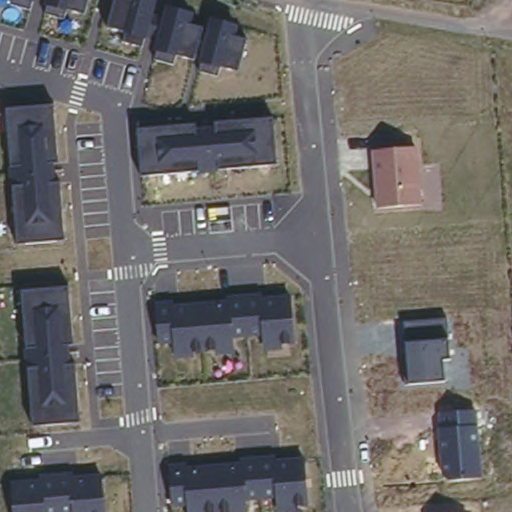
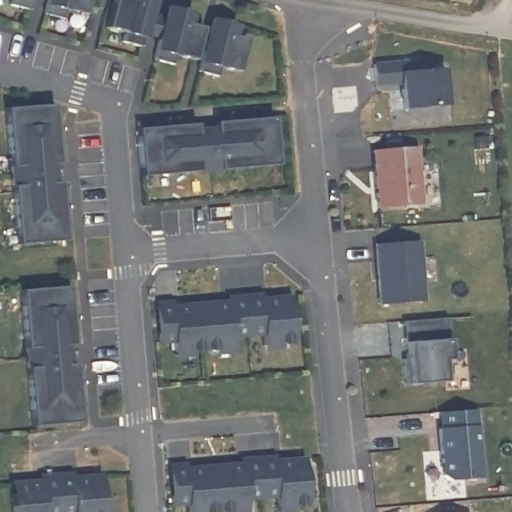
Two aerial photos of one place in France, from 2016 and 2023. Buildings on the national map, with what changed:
unchanged [(35,0),(31,12),(11,5),(12,0),(35,0)]
unchanged [(66,10),(63,20),(43,15),(46,0),(89,0),(85,15),(66,10)]
unchanged [(105,26),(113,0),(160,0),(156,15),(164,17),(167,5),(196,13),(194,24),(206,27),(209,17),(240,25),(237,37),(247,40),(238,71),(219,67),(217,77),(198,72),(201,61),(176,55),(173,65),(153,60),(158,39),(145,35),(142,49),(123,42),(125,31),(105,26)]
new [(417,59),(419,71),(444,66),(446,105),(403,110),(400,82),(376,85),(374,62),(417,59)]
unchanged [(7,108),(55,104),(59,165),(55,166),(56,182),(60,182),(64,241),(17,245),(7,108)]
unchanged [(137,130),(273,119),(276,165),(140,177),(137,130)]
unchanged [(371,150),(416,147),(422,205),(375,207),(371,150)]
new [(419,240),(424,301),(379,305),(373,245),(419,240)]
unchanged [(24,290),(70,287),(73,346),(69,348),(69,365),(75,365),(79,424),(33,426),(24,290)]
unchanged [(172,343),(157,345),(153,300),(174,298),(174,306),(224,302),(224,296),(267,292),(267,296),(291,295),(294,342),(281,343),(281,351),(264,353),(262,335),(232,337),(234,355),(216,357),(215,351),(193,352),(192,359),(174,359),(172,343)]
unchanged [(402,322),(448,318),(452,360),(444,361),(445,383),(406,385),(402,322)]
unchanged [(441,472),(436,413),(476,410),(481,477),(450,481),(441,472)]
unchanged [(186,506),(172,506),(170,464),(191,462),(191,466),(231,463),(231,459),(275,455),(275,460),(305,457),(308,505),(295,506),(295,512),(277,512),(275,497),(247,500),(248,512),(187,512),(186,506)]
unchanged [(10,481),(39,478),(39,475),(72,471),(73,476),(102,473),(105,512),(13,512),(10,481)]

